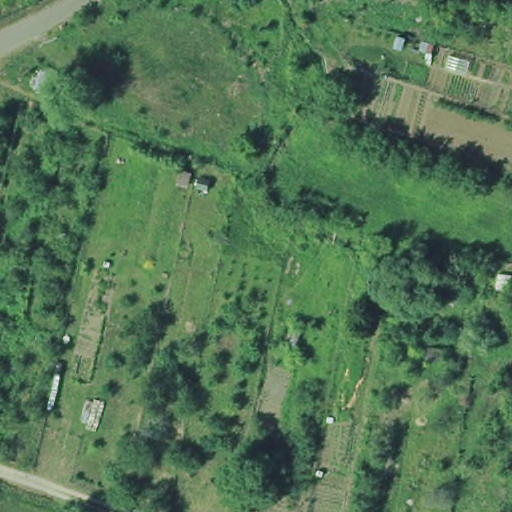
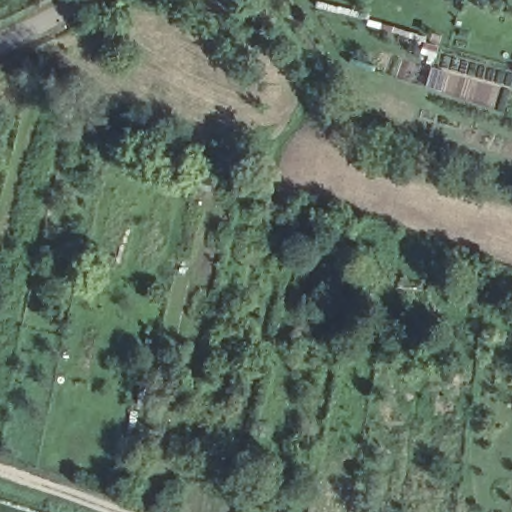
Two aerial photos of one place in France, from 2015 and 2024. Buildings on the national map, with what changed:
unchanged [(272,213),(270,224),(262,222),(264,211),(272,213)]

